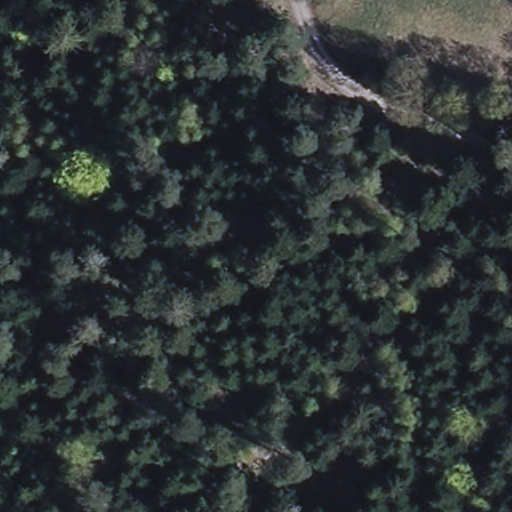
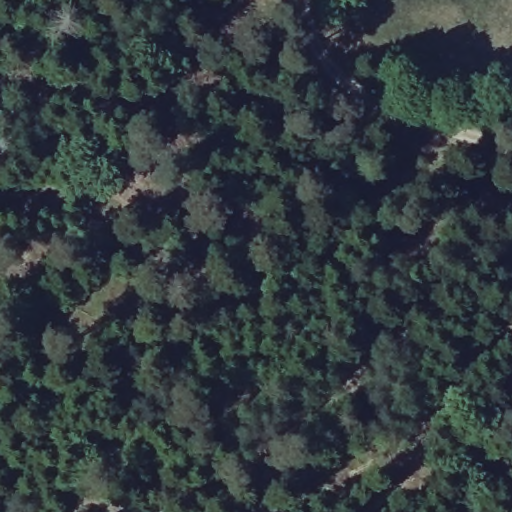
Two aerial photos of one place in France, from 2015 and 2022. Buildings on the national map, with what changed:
[]

